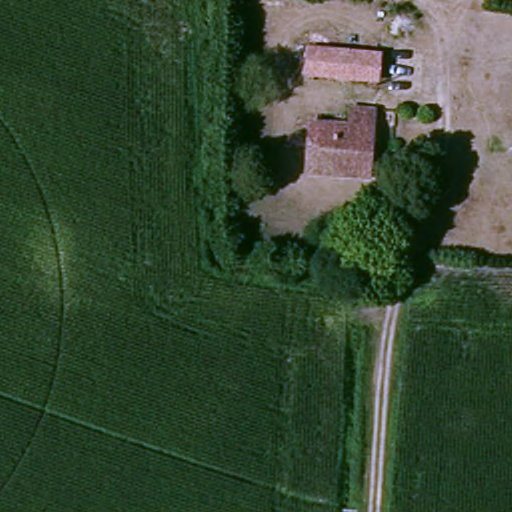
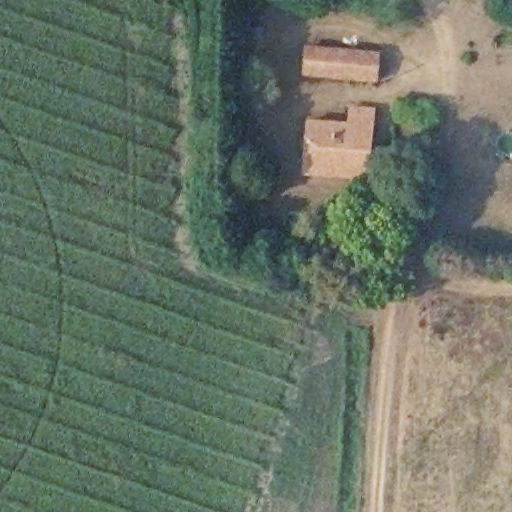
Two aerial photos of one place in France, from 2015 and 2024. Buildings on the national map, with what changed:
unchanged [(354,43),(391,52),(383,85),(307,79),(308,49),(351,54),(354,43)]
unchanged [(380,132),(373,184),(302,175),(302,123),(354,129),(355,116),(372,118),(370,131),(380,132)]

